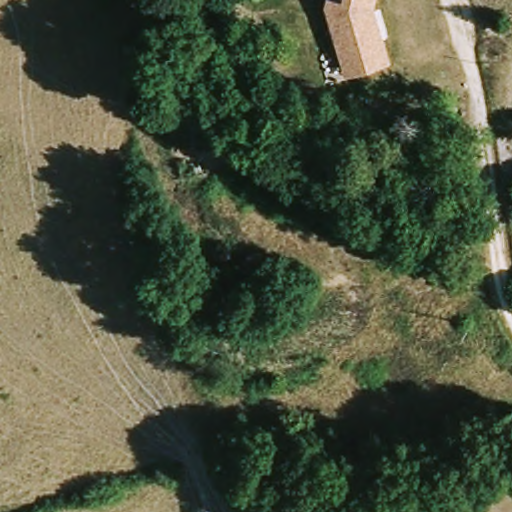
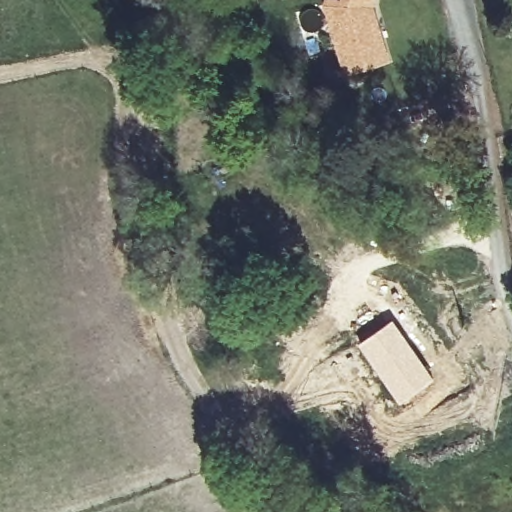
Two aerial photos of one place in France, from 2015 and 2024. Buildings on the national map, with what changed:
unchanged [(335,44),(327,7),(329,0),(375,0),(372,11),(385,63),(357,69),(341,72),(335,44)]
new [(391,318),(433,379),(398,403),(356,343),(391,318)]

